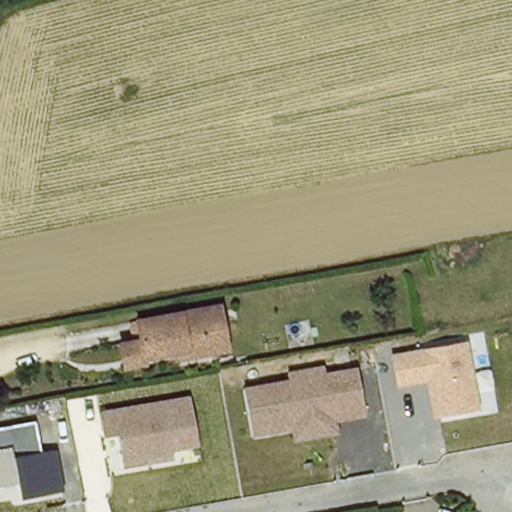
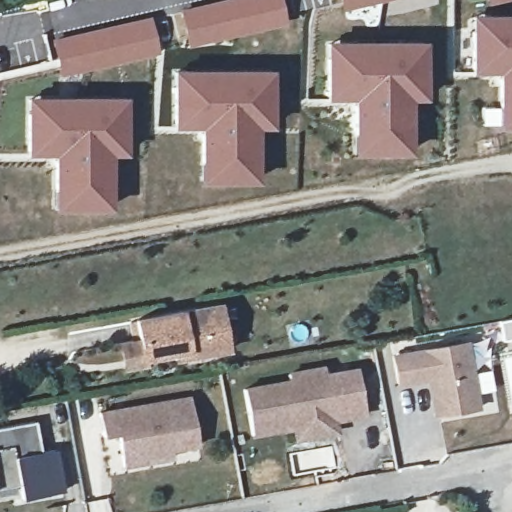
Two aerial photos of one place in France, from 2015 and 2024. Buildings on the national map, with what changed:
new [(279,0),(284,20),(192,44),(185,13),(238,0),(279,0)]
new [(339,0),(387,0),(342,11),(339,0)]
new [(488,0),(507,0),(489,4),(488,0)]
new [(499,129),(499,75),(472,74),(472,15),(512,15),(512,128),(499,129)]
new [(61,76),(52,40),(149,16),(159,55),(61,76)]
new [(354,155),(353,100),(326,100),(325,41),(425,42),(427,100),(412,102),(412,155),(354,155)]
new [(201,184),(200,130),(173,127),(173,70),(274,70),(275,130),(259,130),(259,182),(201,184)]
new [(54,210),(53,156),(25,155),(26,99),(126,97),(126,156),(111,156),(112,209),(54,210)]
unchanged [(130,372),(126,350),(146,346),(142,326),(224,310),(233,353),(193,361),(181,363),(179,357),(148,361),(150,370),(130,372)]
new [(512,316),(512,339),(501,341),(497,319),(512,316)]
unchanged [(437,417),(432,391),(440,390),(438,377),(399,385),(393,356),(467,345),(479,408),(437,417)]
unchanged [(290,380),(288,371),(322,365),(324,373),(357,368),(366,418),(337,423),(339,435),(295,442),(293,432),(253,438),(244,388),(290,380)]
unchanged [(191,396),(200,446),(175,450),(178,461),(126,470),(120,435),(104,437),(100,411),(191,396)]
unchanged [(41,453),(55,451),(63,494),(24,500),(20,485),(0,488),(0,429),(35,423),(41,453)]

